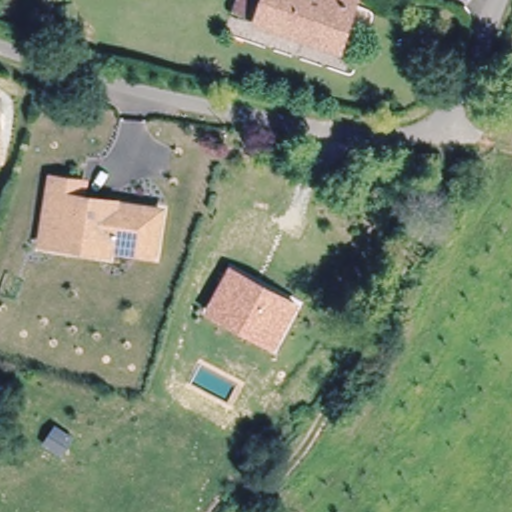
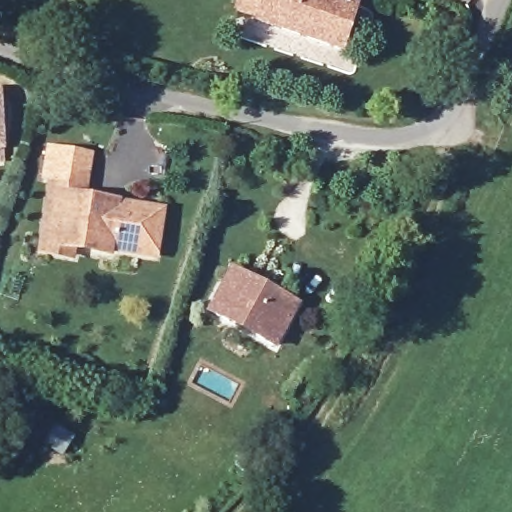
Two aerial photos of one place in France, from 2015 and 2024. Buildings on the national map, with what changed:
unchanged [(231,14),(236,0),(264,0),(256,22),(231,14)]
unchanged [(256,22),(264,0),(354,0),(338,49),(256,22)]
unchanged [(0,114),(1,114),(2,115),(4,116),(4,118),(5,119),(5,120),(5,121),(5,123),(5,124),(4,125),(3,126),(2,127),(1,128),(0,128),(0,114)]
unchanged [(0,147),(1,162),(0,162),(0,133),(0,147)]
new [(51,184),(39,183),(45,145),(89,153),(82,189),(51,184)]
unchanged [(44,234),(51,184),(82,189),(80,204),(99,208),(115,210),(160,218),(153,262),(109,255),(109,257),(71,251),(42,247),(44,234)]
unchanged [(300,304),(275,349),(206,312),(230,265),(300,304)]

